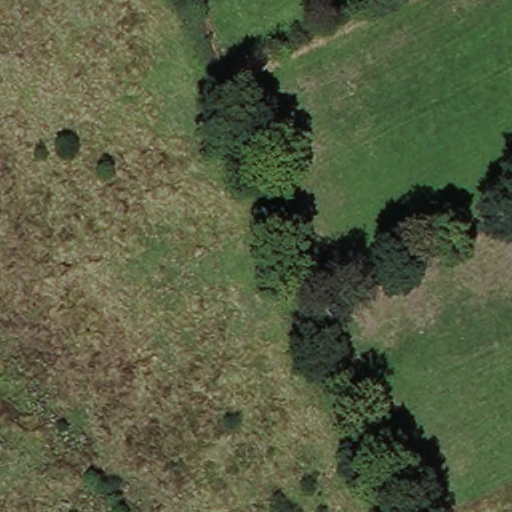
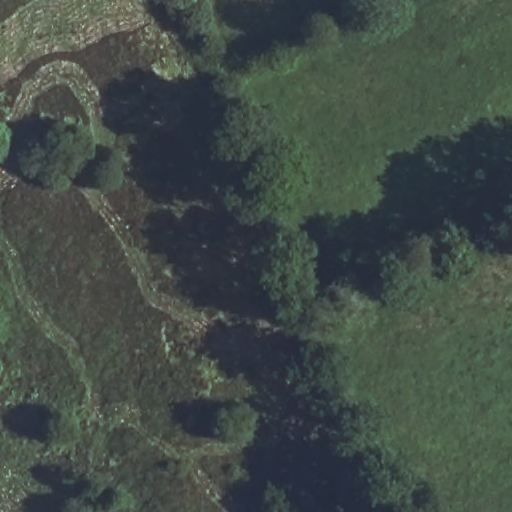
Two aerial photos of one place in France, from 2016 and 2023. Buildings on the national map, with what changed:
[]

